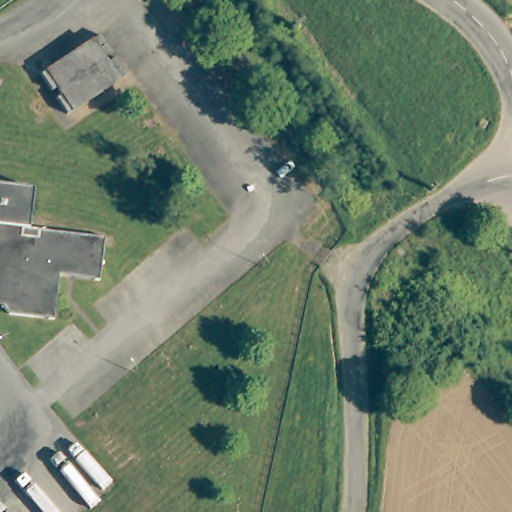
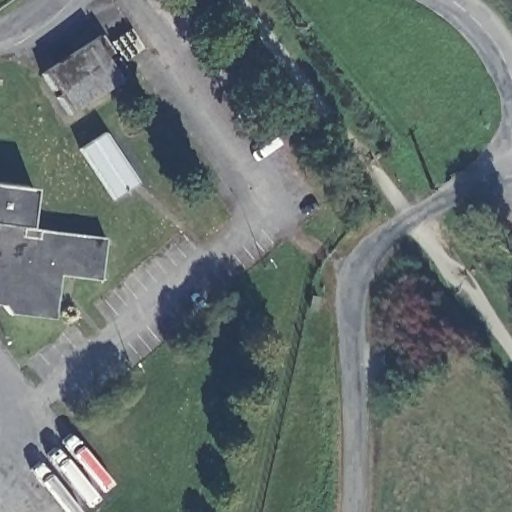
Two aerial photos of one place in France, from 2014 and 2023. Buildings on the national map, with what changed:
unchanged [(101,39),(110,52),(108,54),(114,63),(118,61),(126,75),(70,114),(60,100),(64,97),(59,91),(55,93),(44,77),(101,39)]
new [(104,131),(139,184),(115,200),(81,147),(104,131)]
unchanged [(29,186),(37,187),(35,203),(29,203),(26,226),(108,236),(103,280),(61,275),(56,318),(9,313),(0,302),(0,181),(30,184),(29,186)]

